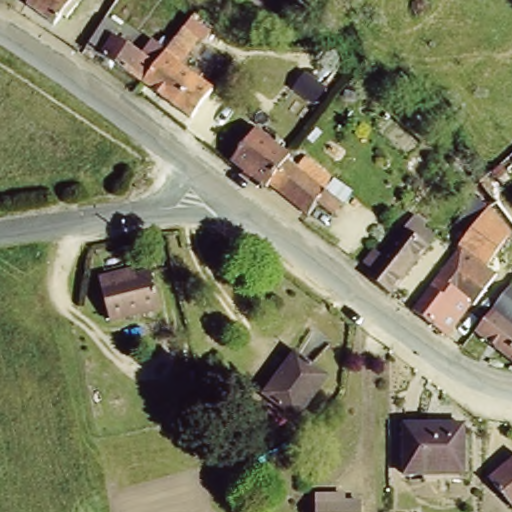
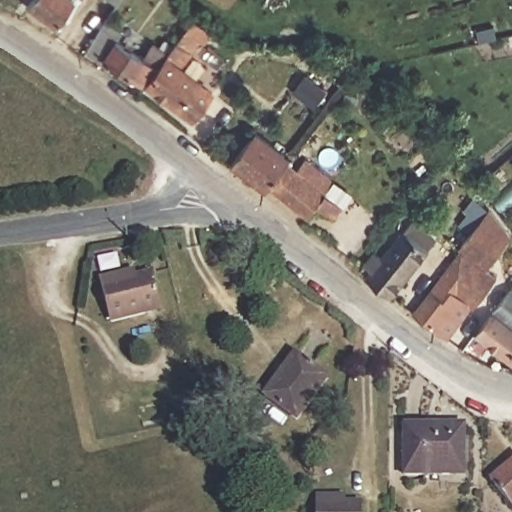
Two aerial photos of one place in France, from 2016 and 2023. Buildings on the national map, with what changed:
unchanged [(69,19),(61,14),(54,24),(26,4),(30,0),(81,0),(79,2),(69,19)]
unchanged [(104,0),(127,0),(118,14),(103,2),(104,0)]
unchanged [(196,10),(216,29),(201,49),(195,45),(180,66),(213,89),(192,117),(143,82),(157,63),(196,10)]
unchanged [(116,26),(111,33),(157,63),(143,82),(101,54),(99,58),(83,48),(104,18),(116,26)]
unchanged [(293,157),(290,162),(299,168),(307,158),(334,180),(326,191),(342,203),(333,216),(316,203),(306,214),(269,186),(265,191),(231,165),(259,131),(288,153),(293,157)]
unchanged [(437,232),(396,285),(375,269),(379,263),(371,258),(384,243),(391,249),(416,216),(437,232)]
unchanged [(501,236),(494,246),(499,249),(488,270),(494,274),(483,289),(469,278),(472,274),(467,270),(464,275),(450,265),(461,247),(464,251),(475,233),(484,223),(501,236)]
unchanged [(450,265),(464,275),(467,270),(472,274),(469,278),(483,289),(474,301),(459,290),(433,324),(416,310),(450,265)]
unchanged [(111,320),(102,279),(128,272),(139,269),(141,275),(156,271),(164,306),(111,320)]
unchanged [(498,312),(495,310),(512,286),(512,323),(498,312)]
unchanged [(482,333),(498,312),(512,323),(512,356),(482,333)]
unchanged [(329,374),(296,417),(265,394),(283,368),(278,365),(282,360),(286,363),(297,350),(329,374)]
unchanged [(467,470),(424,469),(424,474),(406,474),(407,425),(468,425),(467,470)]
unchanged [(491,479),(512,462),(512,504),(491,479)]
unchanged [(319,502),(319,494),(344,494),(344,503),(363,503),(363,512),(319,512),(319,502)]

